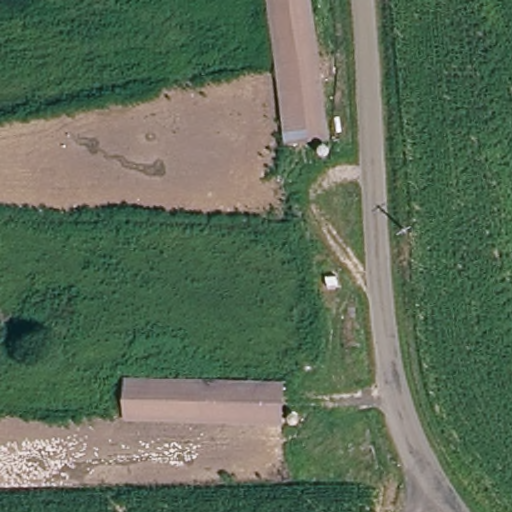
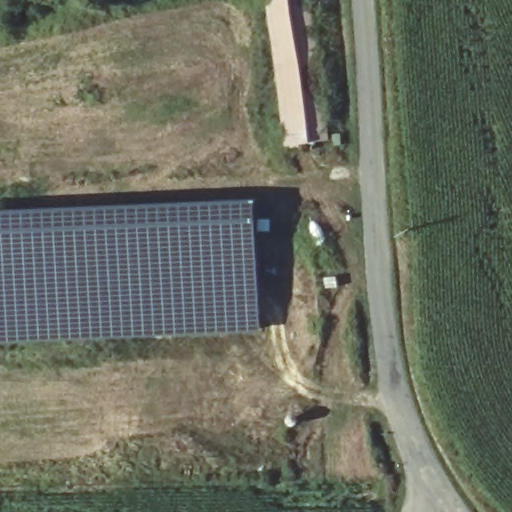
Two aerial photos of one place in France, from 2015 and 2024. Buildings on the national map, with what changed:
unchanged [(328,161),(309,162),(309,145),(283,145),(267,0),(310,0),(326,137),(328,161)]
new [(260,331),(0,342),(0,210),(254,199),(260,331)]
demolished [(356,305),(329,305),(328,283),(355,281),(356,305)]
unchanged [(285,382),(282,423),(121,420),(122,377),(285,382)]

